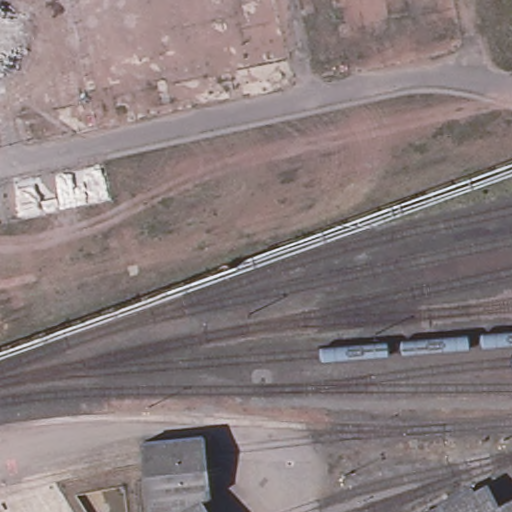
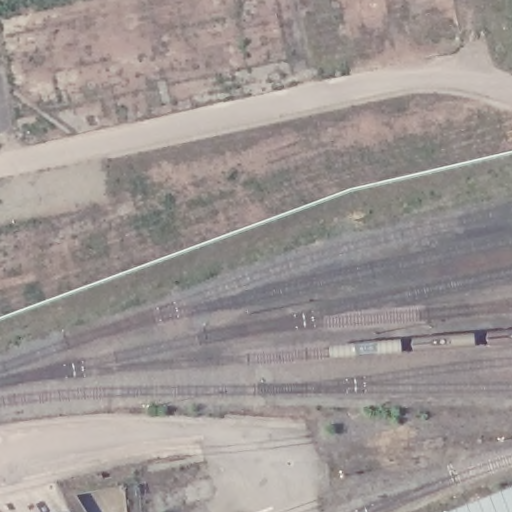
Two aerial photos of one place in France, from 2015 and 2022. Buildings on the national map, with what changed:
demolished [(0,61),(0,30),(6,60),(0,61)]
demolished [(209,439),(215,502),(209,505),(197,512),(154,512),(147,446),(209,439)]
demolished [(471,486),(474,490),(486,483),(497,504),(512,496),(512,512),(421,512),(471,486)]
demolished [(209,505),(213,512),(197,512),(209,505)]

